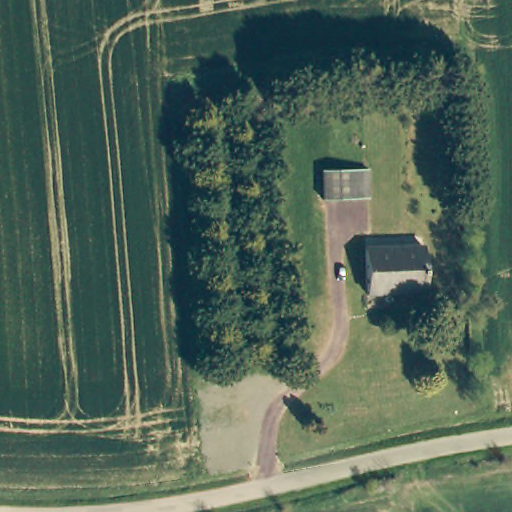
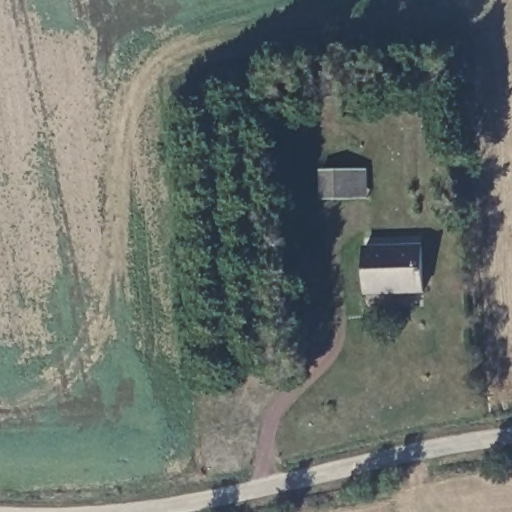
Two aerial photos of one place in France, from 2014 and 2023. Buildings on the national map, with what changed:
unchanged [(368,250),(426,248),(427,294),(368,295),(368,250)]

